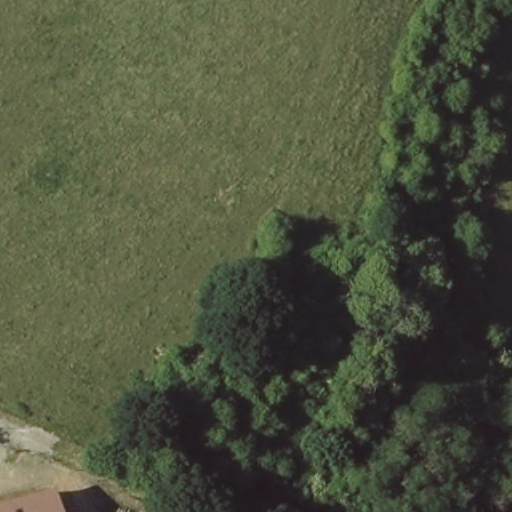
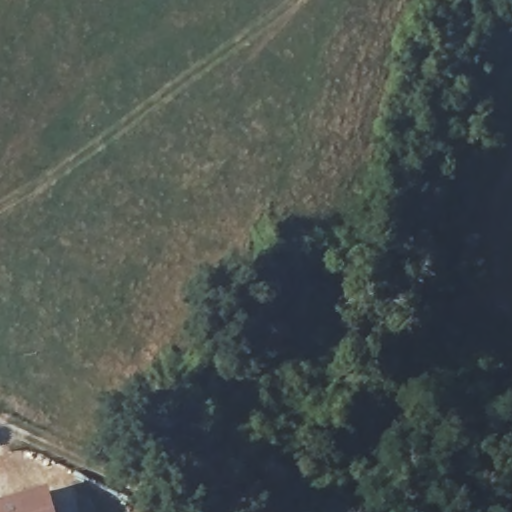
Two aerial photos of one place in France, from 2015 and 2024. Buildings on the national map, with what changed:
unchanged [(56,512),(0,512),(0,511),(51,495),(56,512)]

